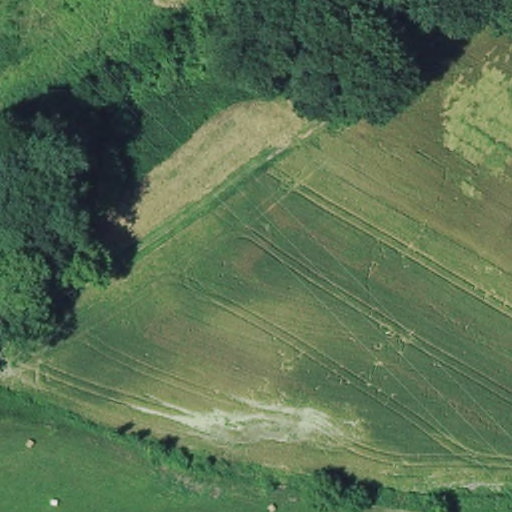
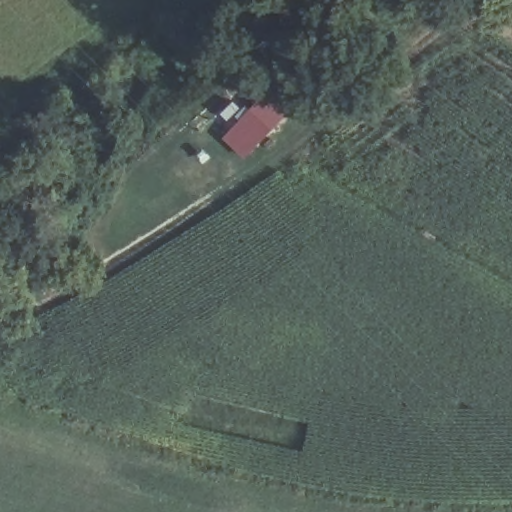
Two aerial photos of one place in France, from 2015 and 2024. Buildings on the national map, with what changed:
new [(266,93),(288,113),(288,114),(246,160),(225,139),(266,93)]

